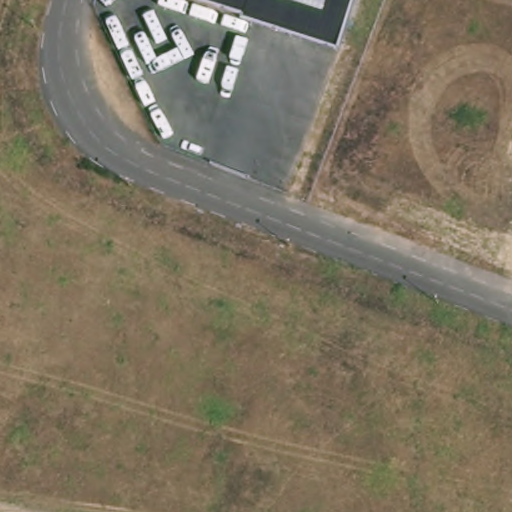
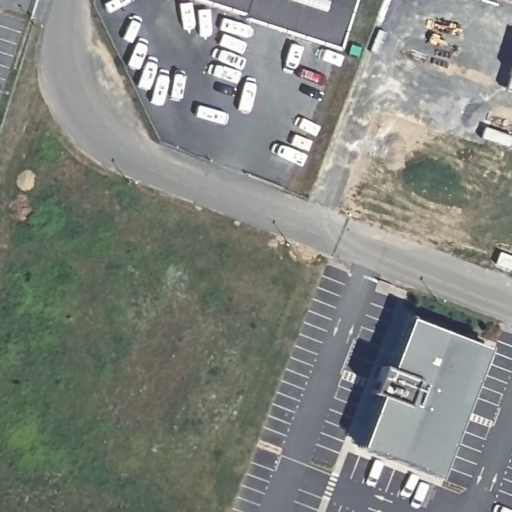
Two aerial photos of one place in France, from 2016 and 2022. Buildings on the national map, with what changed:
unchanged [(249,19),(249,17),(193,0),(361,0),(346,50),(249,19)]
new [(384,398),(376,395),(387,367),(395,370),(415,320),(493,350),(443,480),(365,449),(384,398)]

